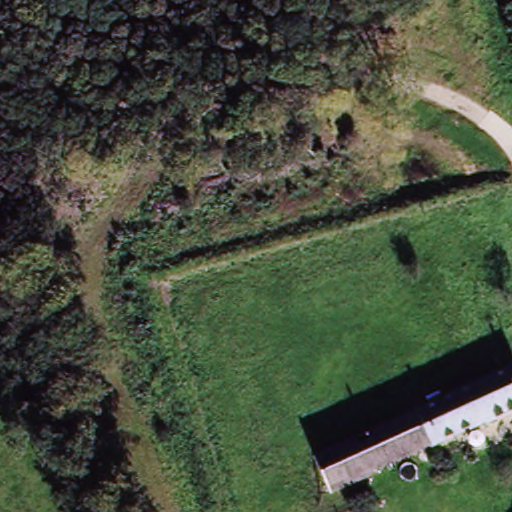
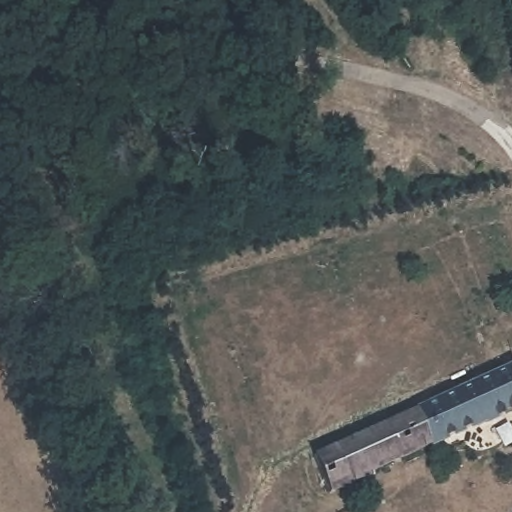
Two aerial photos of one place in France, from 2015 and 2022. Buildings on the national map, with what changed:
unchanged [(512,370),(512,411),(489,422),(488,419),(371,472),(369,477),(329,495),(313,462),(512,370)]

